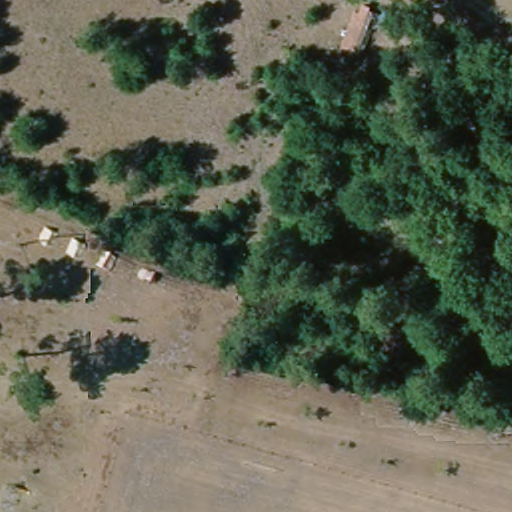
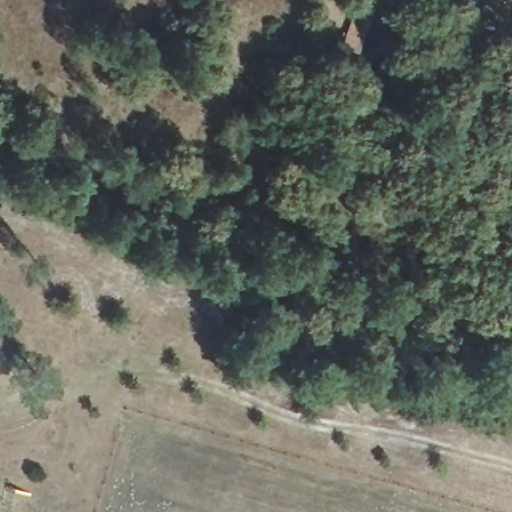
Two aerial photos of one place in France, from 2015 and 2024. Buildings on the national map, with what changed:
[]

